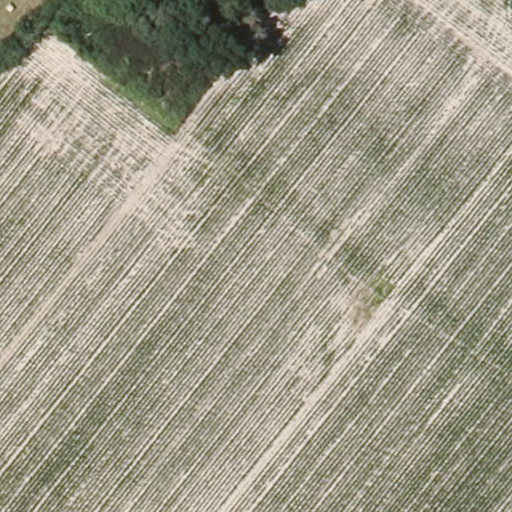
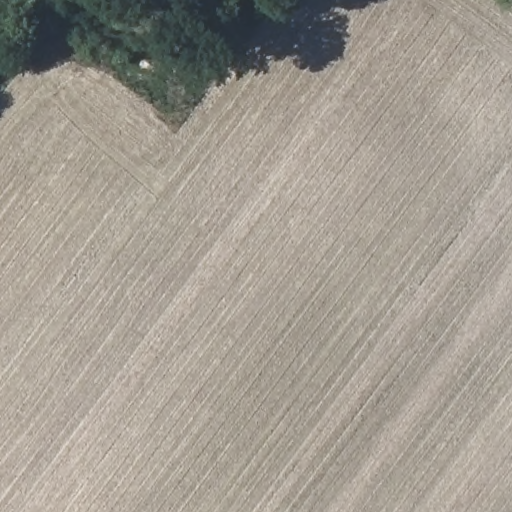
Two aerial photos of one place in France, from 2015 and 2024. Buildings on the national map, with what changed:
[]

